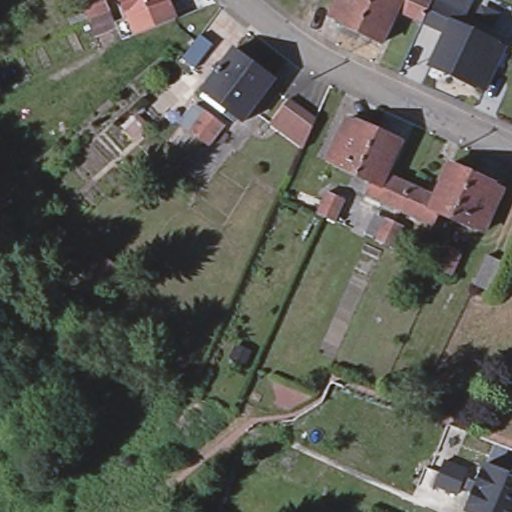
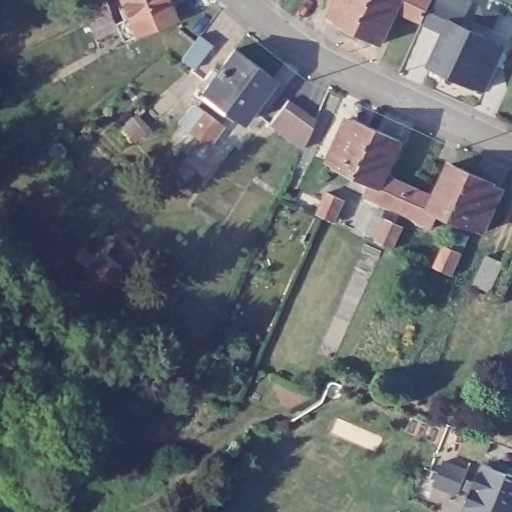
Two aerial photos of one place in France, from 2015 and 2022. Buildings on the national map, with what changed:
unchanged [(104,0),(109,12),(87,22),(78,3),(85,0),(104,0)]
unchanged [(129,6),(126,0),(172,0),(175,8),(135,23),(129,6)]
unchanged [(422,24),(397,13),(382,46),(339,28),(340,25),(332,22),(341,0),(431,0),(433,1),(422,24)]
unchanged [(467,16),(462,27),(495,41),(494,44),(504,48),(487,90),(475,86),(475,88),(432,70),(447,34),(422,24),(433,1),(467,16)]
unchanged [(210,42),(192,67),(182,60),(200,35),(210,42)]
unchanged [(234,51),(270,80),(240,119),(204,91),(209,84),(216,75),(234,51)]
unchanged [(220,125),(205,144),(185,129),(201,109),(220,125)]
unchanged [(330,169),(348,123),(355,126),(356,124),(402,141),(391,172),(437,190),(449,161),(504,182),(502,186),(508,188),(490,233),(445,217),(441,226),(359,195),(364,182),(330,169)]
unchanged [(502,265),(489,295),(470,287),(484,257),(502,265)]
unchanged [(505,447),(509,440),(511,433),(512,431),(512,450),(505,447)]
unchanged [(502,461),(512,464),(512,512),(493,512),(472,504),(490,456),(502,461)]

